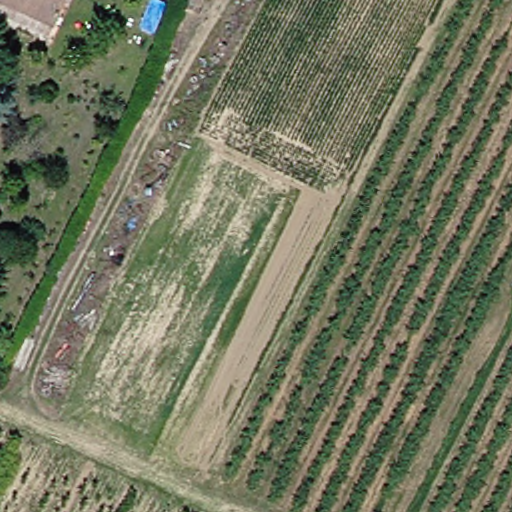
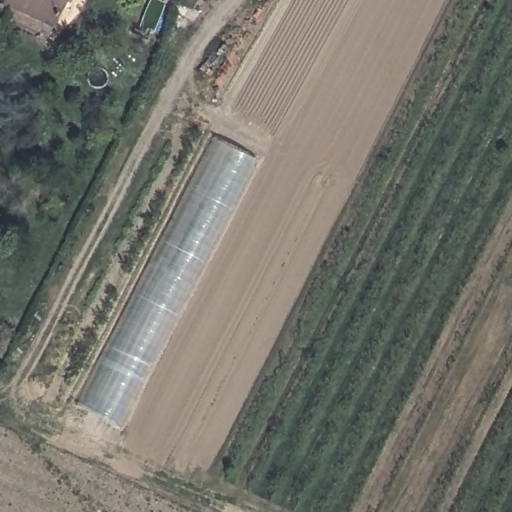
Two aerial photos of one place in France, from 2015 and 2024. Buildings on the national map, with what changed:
unchanged [(0,11),(0,0),(53,0),(43,21),(39,30),(0,11)]
new [(212,137),(257,161),(122,428),(76,405),(212,137)]

